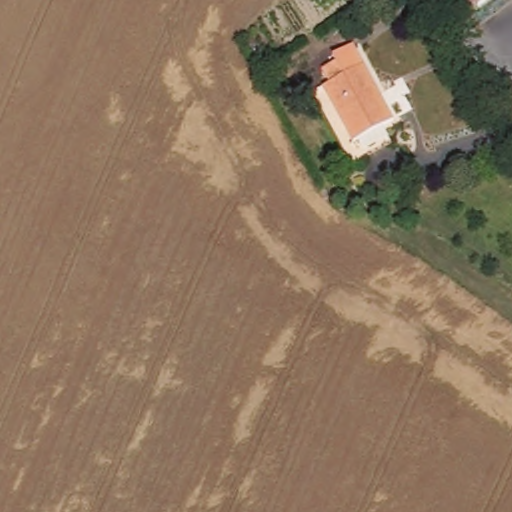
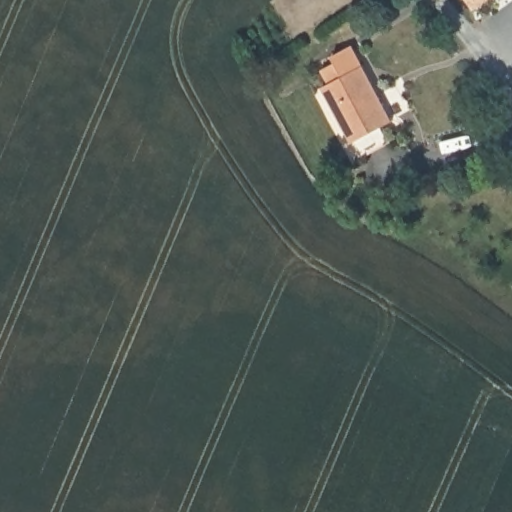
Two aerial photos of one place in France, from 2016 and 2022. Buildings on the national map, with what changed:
unchanged [(476,5),(471,0),(484,0),(476,5)]
unchanged [(389,121),(349,142),(319,86),(339,75),(329,55),(349,45),(389,121)]

